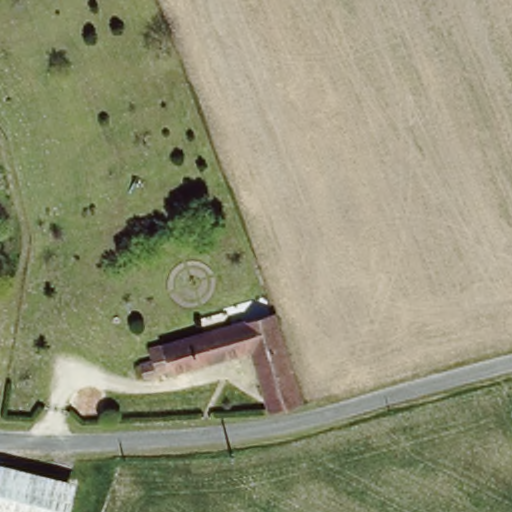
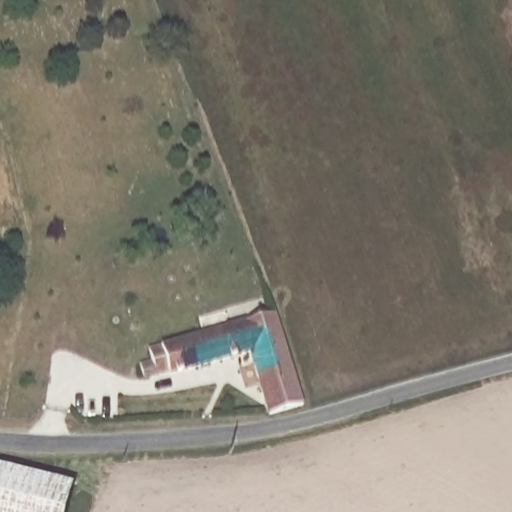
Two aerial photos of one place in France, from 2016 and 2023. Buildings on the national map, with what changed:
unchanged [(274,412),(256,350),(176,375),(173,369),(151,376),(147,363),(156,360),(153,347),(204,331),(201,316),(241,304),(246,320),(278,313),(302,404),(274,412)]
unchanged [(71,512),(0,512),(0,465),(78,484),(71,512)]

